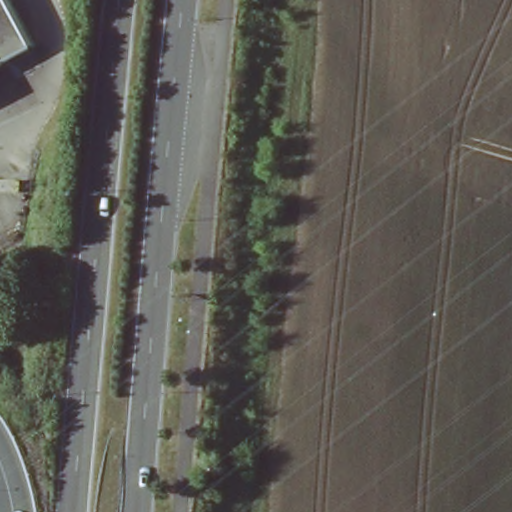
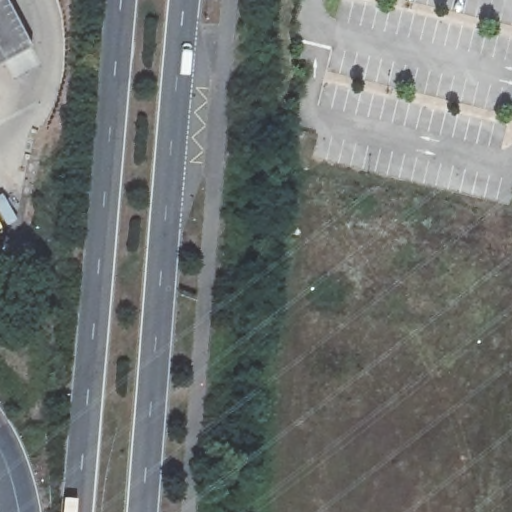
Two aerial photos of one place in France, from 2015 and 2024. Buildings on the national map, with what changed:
unchanged [(5,61),(0,64),(0,0),(7,0),(32,46),(5,61)]

